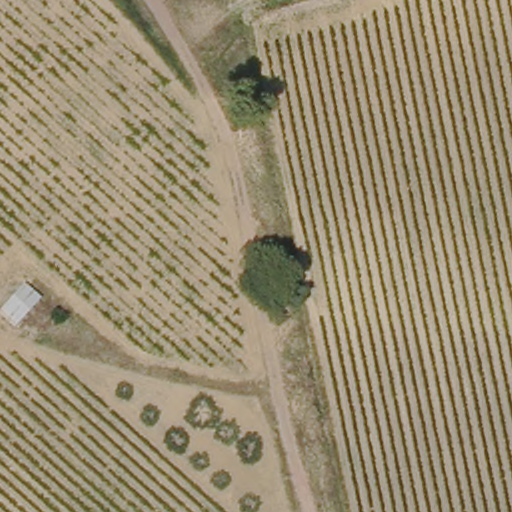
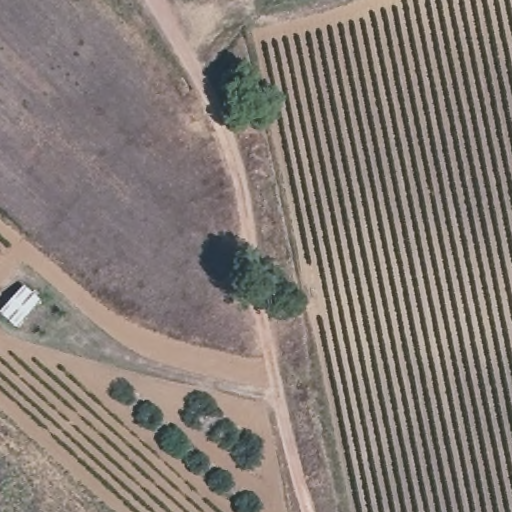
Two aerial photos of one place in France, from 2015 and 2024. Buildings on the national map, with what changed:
unchanged [(40,305),(18,330),(2,315),(24,291),(40,305)]

